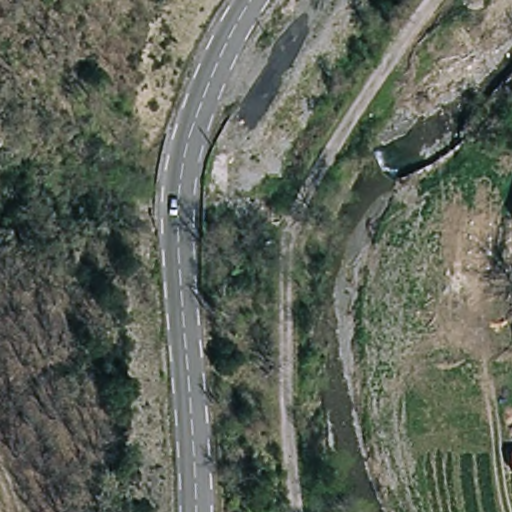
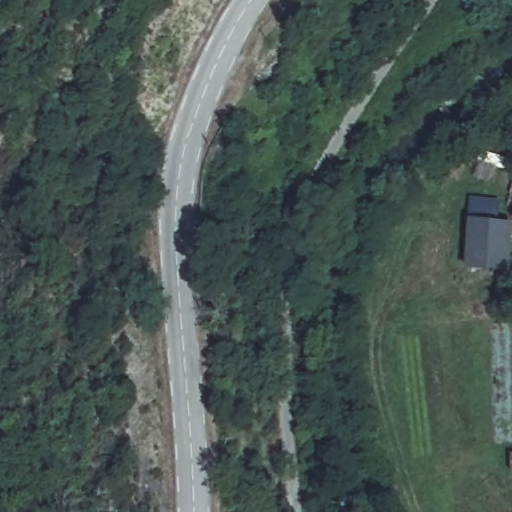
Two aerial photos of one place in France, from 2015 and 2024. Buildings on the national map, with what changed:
new [(509,193),(512,184),(512,194),(509,193)]
new [(468,220),(470,199),(500,200),(500,222),(512,223),(512,233),(510,271),(466,270),(468,220)]

